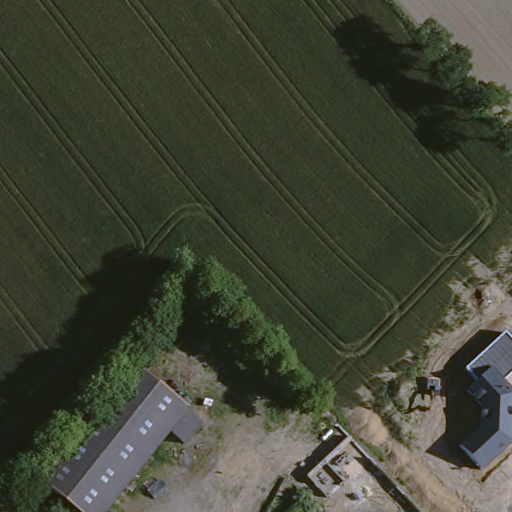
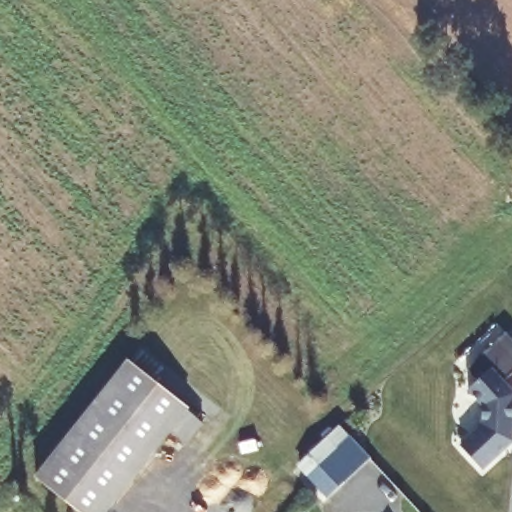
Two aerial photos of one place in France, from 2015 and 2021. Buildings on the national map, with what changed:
unchanged [(512,340),(512,373),(505,379),(512,387),(512,443),(483,471),(459,445),(482,423),(481,402),(469,389),(476,381),(466,369),(505,332),(512,340)]
unchanged [(187,410),(203,422),(187,443),(170,430),(105,512),(77,512),(36,478),(131,360),(188,407),(187,410)]
new [(349,435),(369,457),(345,481),(327,497),(306,475),(324,459),(349,435)]

